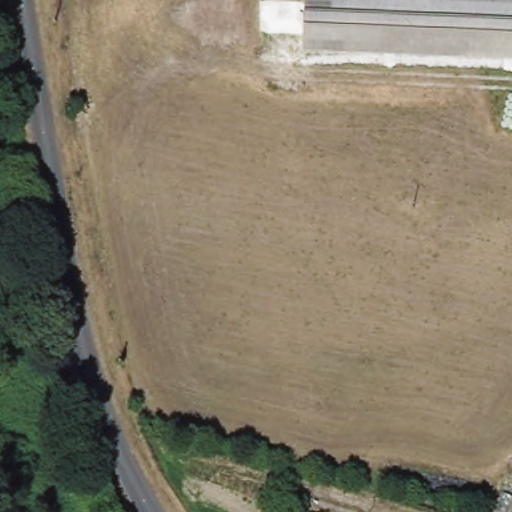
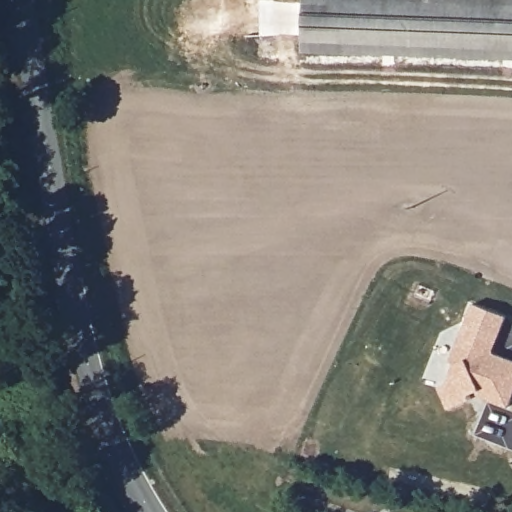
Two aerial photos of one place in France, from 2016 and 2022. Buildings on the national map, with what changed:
unchanged [(309,46),(311,0),(512,0),(512,56),(309,46)]
new [(507,315),(493,353),(512,359),(512,402),(510,407),(478,396),(470,398),(472,402),(449,410),(439,387),(448,384),(455,365),(451,364),(472,303),(507,315)]

